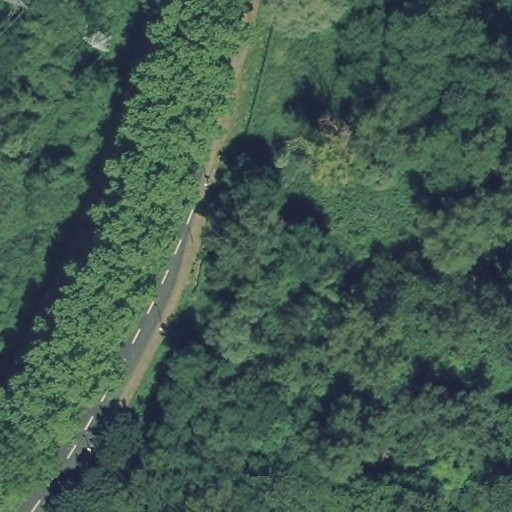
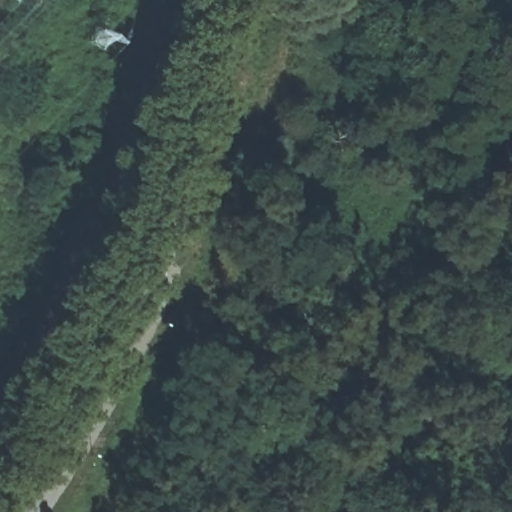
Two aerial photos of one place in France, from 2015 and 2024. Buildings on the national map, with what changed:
unchanged [(399,263),(394,297),(344,288),(347,254),(399,263)]

